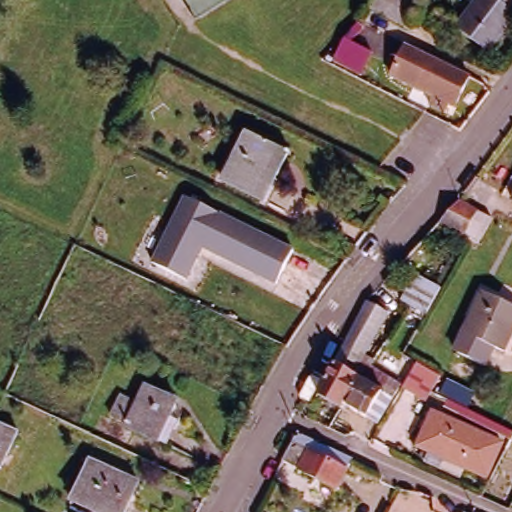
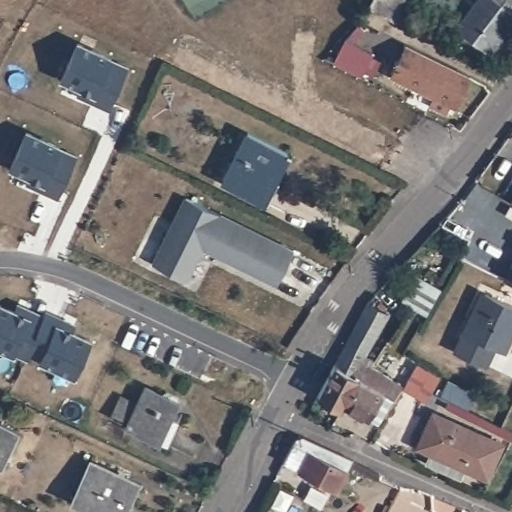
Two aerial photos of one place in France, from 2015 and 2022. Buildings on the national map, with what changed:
unchanged [(418,0),(420,1),(406,25),(367,2),(369,0),(418,0)]
unchanged [(488,54),(457,31),(480,0),(512,0),(512,21),(488,54)]
unchanged [(352,31),(363,45),(340,62),(330,47),(352,31)]
unchanged [(454,106),(447,102),(442,110),(428,103),(432,95),(390,73),(405,43),(443,62),(469,75),(454,106)]
new [(92,95),(90,101),(75,95),(79,88),(59,79),(75,44),(109,59),(108,61),(124,68),(109,102),(92,95)]
new [(42,183),(39,190),(24,183),(27,177),(8,168),(24,132),(57,148),(57,150),(73,157),(57,191),(42,183)]
unchanged [(276,180),(273,178),(262,201),(222,181),(246,132),(289,153),(276,180)]
unchanged [(184,192),(292,245),(275,278),(201,242),(185,274),(151,258),(184,192)]
unchanged [(510,200),(512,196),(512,202),(510,200)]
unchanged [(439,222),(457,201),(489,216),(475,241),(466,236),(439,222)]
new [(512,279),(512,284),(510,283),(512,279)]
unchanged [(424,313),(409,304),(400,299),(407,285),(432,298),(424,313)]
unchanged [(453,349),(462,331),(469,316),(473,318),(485,294),(512,307),(512,334),(503,352),(491,345),(482,363),(453,349)]
unchanged [(315,388),(364,299),(365,298),(385,308),(364,350),(339,398),(337,402),(315,388)]
new [(15,305),(29,312),(26,318),(39,324),(24,358),(10,352),(10,353),(0,349),(0,306),(12,312),(15,305)]
new [(87,341),(70,376),(37,361),(37,359),(25,353),(41,320),(54,325),(57,319),(70,325),(67,332),(87,341)]
unchanged [(372,355),(402,373),(373,418),(339,398),(364,350),(372,355)]
unchanged [(418,356),(442,367),(429,386),(425,393),(404,379),(418,356)]
unchanged [(130,421),(149,381),(180,395),(172,413),(182,418),(172,441),(130,421)]
unchanged [(97,425),(104,410),(130,422),(124,437),(97,425)]
unchanged [(427,459),(431,450),(420,445),(434,412),(485,434),(490,437),(475,470),(470,468),(458,463),(454,472),(427,459)]
unchanged [(0,463),(0,424),(15,431),(0,463)]
unchanged [(340,489),(285,461),(293,448),(299,438),(305,436),(315,441),(354,459),(340,489)]
unchanged [(75,501),(94,460),(142,482),(128,512),(97,512),(75,501)]

